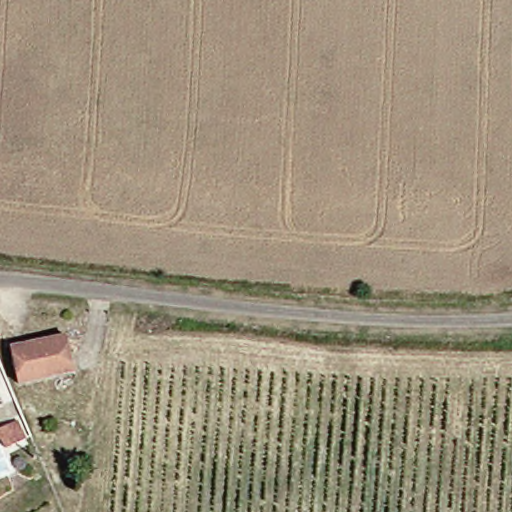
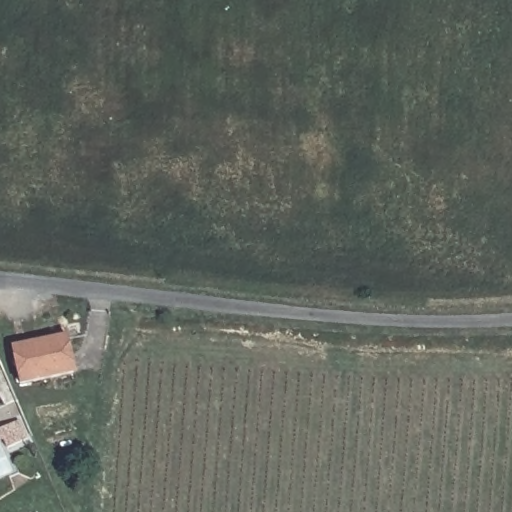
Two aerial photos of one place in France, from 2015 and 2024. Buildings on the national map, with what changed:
unchanged [(80,370),(27,377),(21,342),(75,333),(80,370)]
unchanged [(14,445),(10,438),(5,440),(1,430),(17,423),(25,421),(31,436),(27,438),(14,445)]

